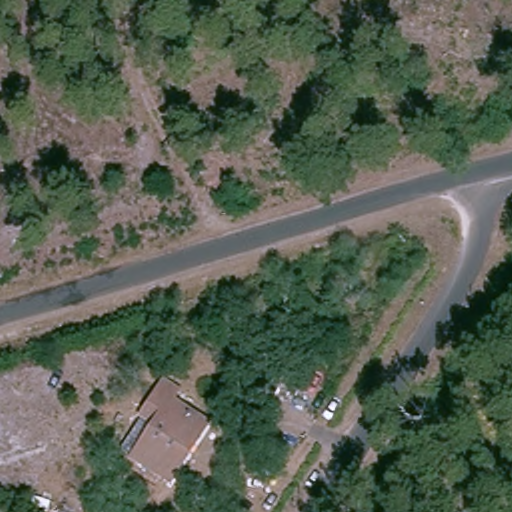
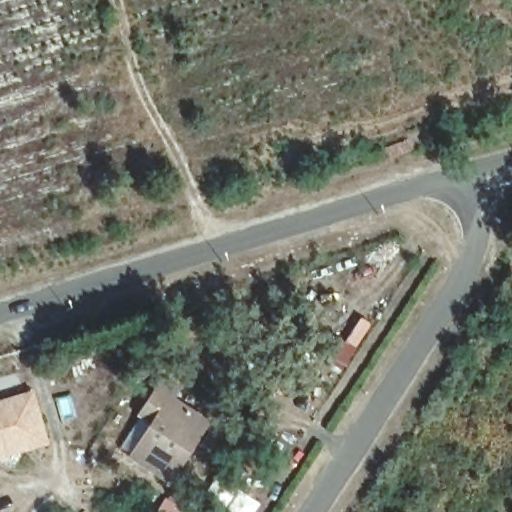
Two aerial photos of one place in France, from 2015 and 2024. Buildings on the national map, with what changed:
unchanged [(184,454),(167,484),(116,448),(157,379),(177,393),(169,406),(191,418),(204,427),(184,454)]
new [(49,444),(0,459),(0,400),(32,390),(49,444)]

